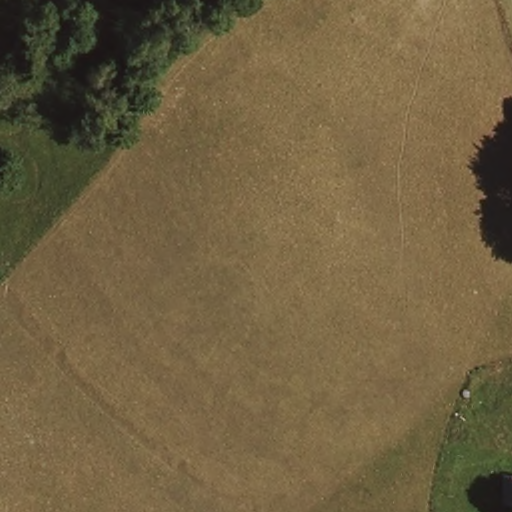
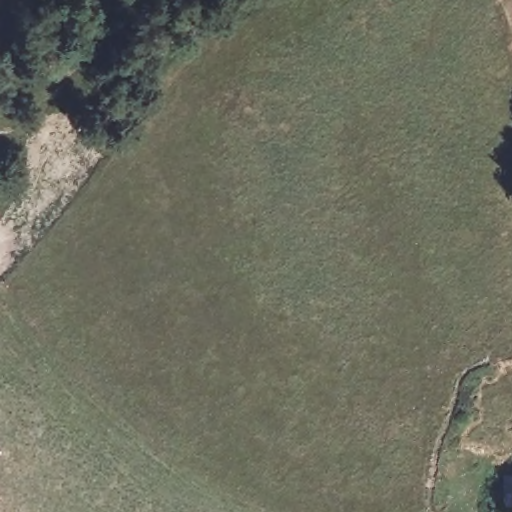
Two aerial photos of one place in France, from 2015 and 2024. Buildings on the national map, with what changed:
unchanged [(512,486),(500,486),(500,458),(512,458),(512,486)]

